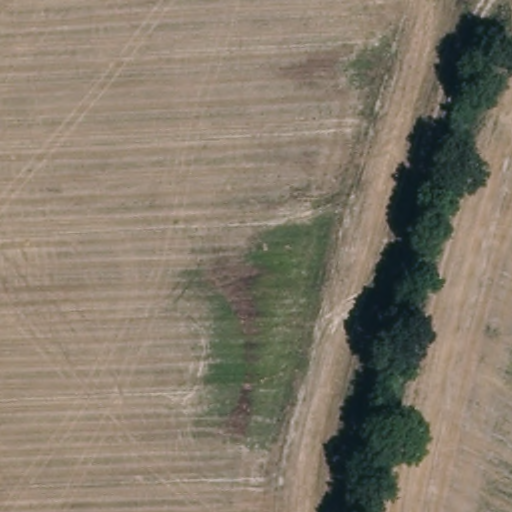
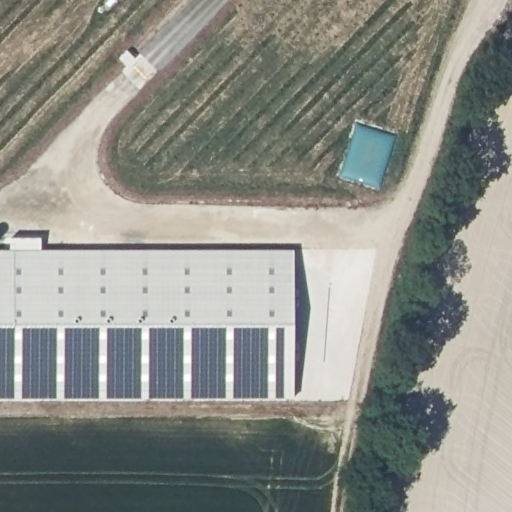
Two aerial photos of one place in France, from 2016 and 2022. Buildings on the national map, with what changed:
new [(272,379),(0,378),(0,274),(270,274),(272,379)]

